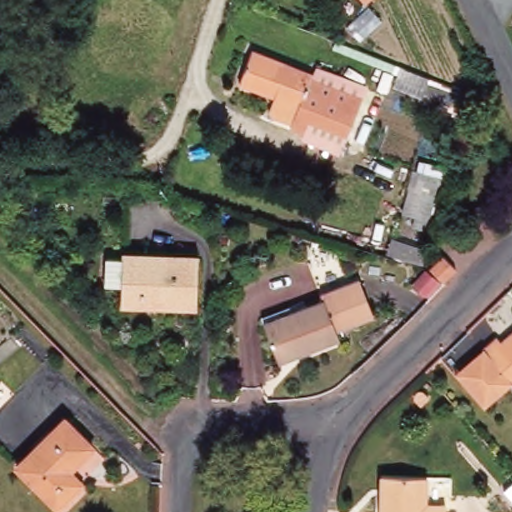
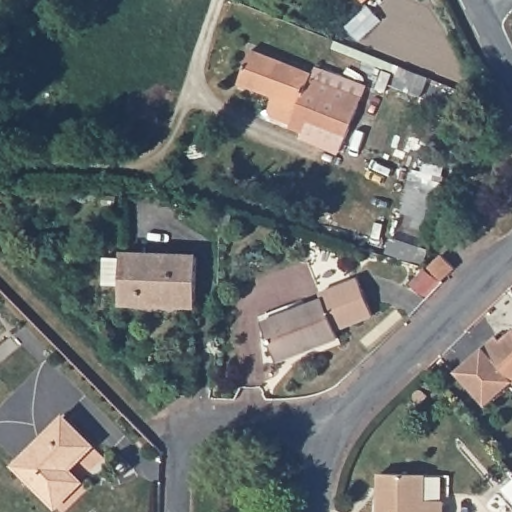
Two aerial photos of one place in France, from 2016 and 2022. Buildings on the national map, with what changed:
unchanged [(240,85),(252,52),(311,75),(310,80),(361,100),(346,138),(307,123),(303,134),(289,129),(294,116),(271,107),(274,99),(240,85)]
unchanged [(431,210),(425,228),(412,224),(413,221),(401,217),(402,213),(410,215),(413,204),(431,210)]
unchanged [(195,258),(194,307),(120,303),(123,255),(195,258)]
unchanged [(453,270),(441,281),(430,269),(442,256),(453,270)]
unchanged [(408,267),(403,285),(390,280),(395,263),(408,267)]
unchanged [(320,294),(358,280),(372,316),(335,330),(338,338),(278,361),(263,324),(321,301),(320,294)]
unchanged [(501,338),(506,342),(512,337),(512,391),(486,412),(455,375),(501,338)]
unchanged [(72,489),(55,505),(16,465),(65,418),(93,446),(69,470),(80,481),(72,489)]
unchanged [(380,506),(380,474),(423,475),(423,502),(442,502),(442,512),(382,512),(382,506),(380,506)]

